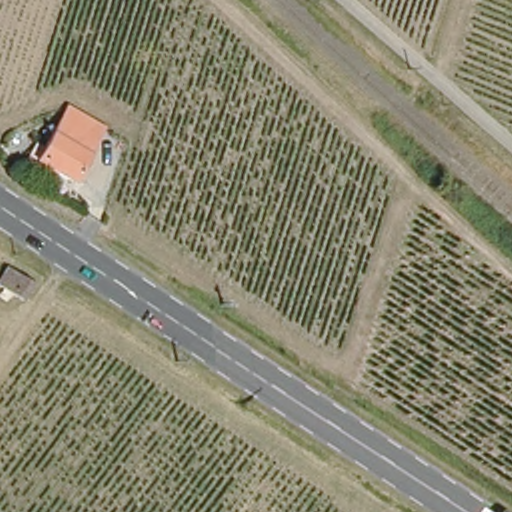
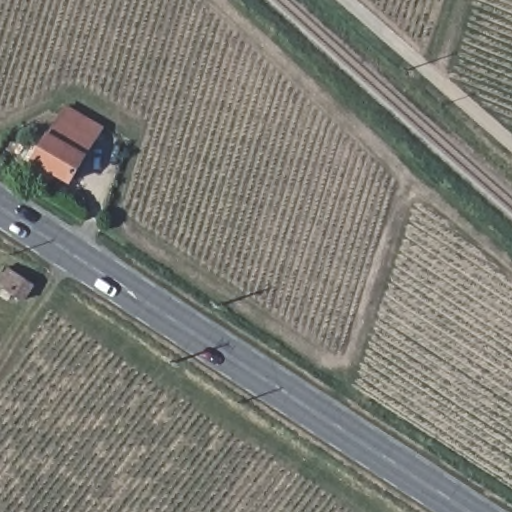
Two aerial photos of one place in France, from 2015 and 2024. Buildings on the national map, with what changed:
unchanged [(65,110),(101,131),(71,182),(36,161),(65,110)]
unchanged [(3,284),(14,269),(38,286),(27,301),(3,284)]

